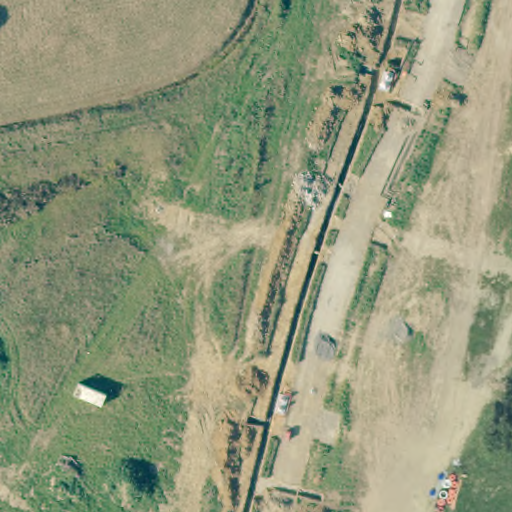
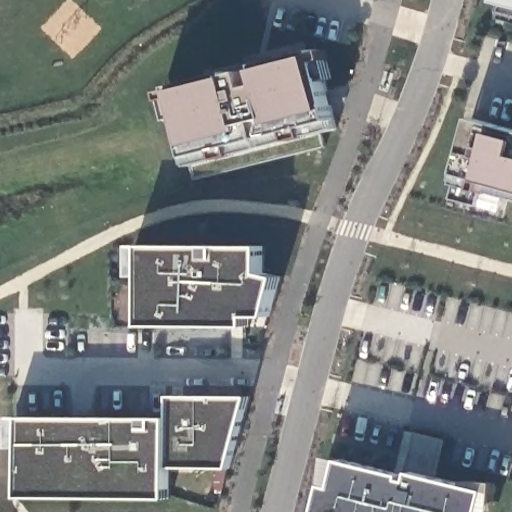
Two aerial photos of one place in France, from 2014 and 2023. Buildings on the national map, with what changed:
new [(498,0),(512,0),(512,5),(498,1),(498,0)]
new [(176,90),(231,76),(248,71),(261,69),(315,56),(328,51),(330,60),(333,79),(325,81),(334,119),(336,129),(337,131),(323,135),(325,146),(196,179),(192,165),(190,155),(181,118),(172,120),(167,100),(164,92),(176,90)]
new [(512,200),(483,191),(478,207),(451,200),(455,185),(459,174),(472,119),(512,130),(512,200)]
new [(146,246),(265,246),(264,272),(282,277),(271,316),(250,316),(251,326),(146,325),(145,275),(135,275),(135,245),(146,246)]
new [(23,418),(170,418),(171,396),(252,397),(232,469),(171,468),(170,498),(22,496),(23,446),(13,446),(13,417),(23,418)]
new [(326,490),(333,463),(395,478),(406,435),(437,443),(427,481),(480,494),(476,512),(310,512),(316,488),(326,490)]

